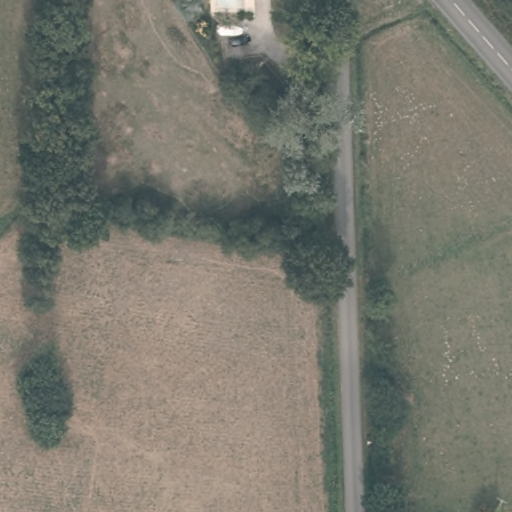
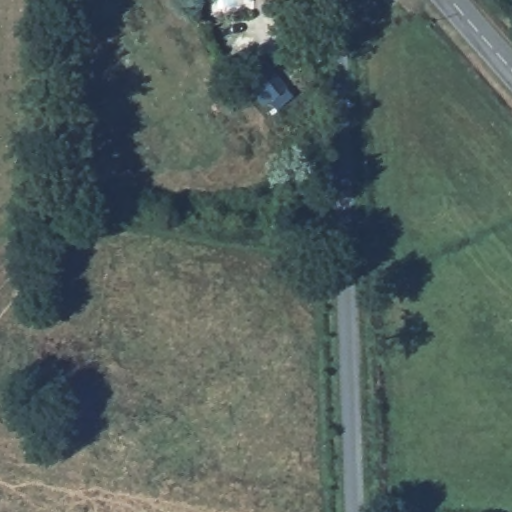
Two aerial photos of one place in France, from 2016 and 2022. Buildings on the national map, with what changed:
unchanged [(265,59),(281,83),(257,99),(242,75),(265,59)]

